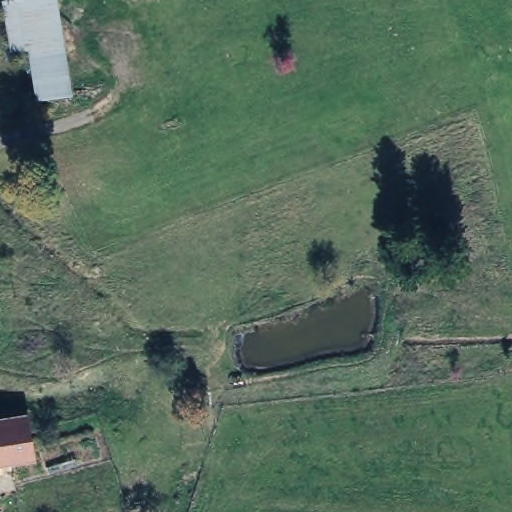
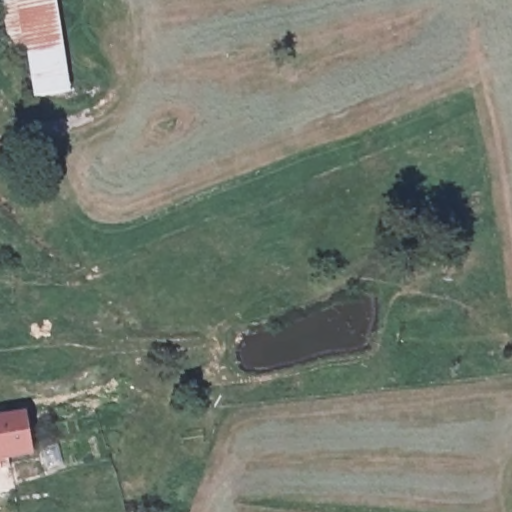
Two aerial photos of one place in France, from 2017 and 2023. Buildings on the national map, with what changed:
unchanged [(30,101),(14,0),(63,0),(79,95),(30,101)]
unchanged [(27,398),(39,455),(12,461),(12,473),(0,475),(0,404),(27,398)]

